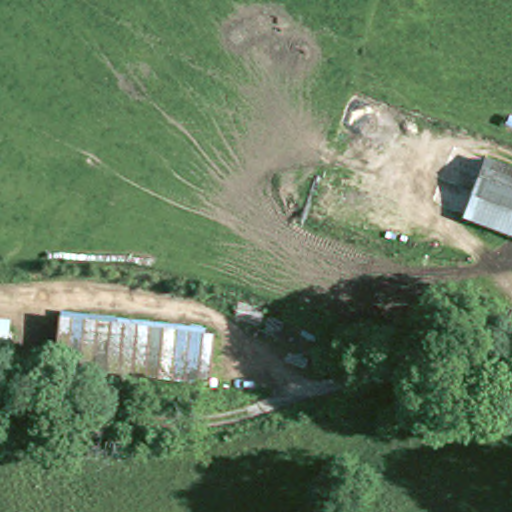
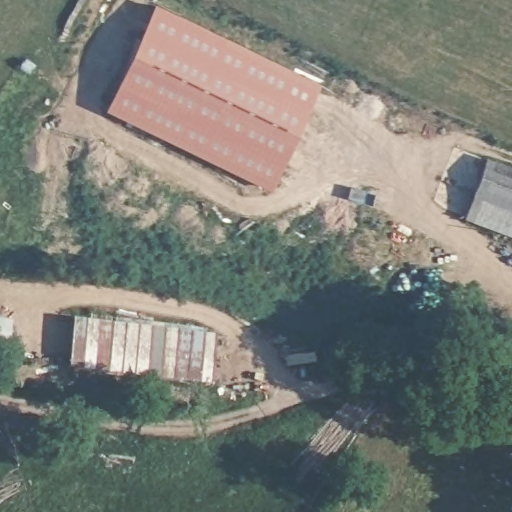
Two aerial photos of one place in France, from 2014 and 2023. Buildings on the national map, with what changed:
new [(155,4),(321,85),(270,189),(104,108),(155,4)]
unchanged [(512,237),(466,219),(482,159),(512,170),(512,237)]
unchanged [(205,389),(49,369),(56,312),(211,333),(205,389)]

